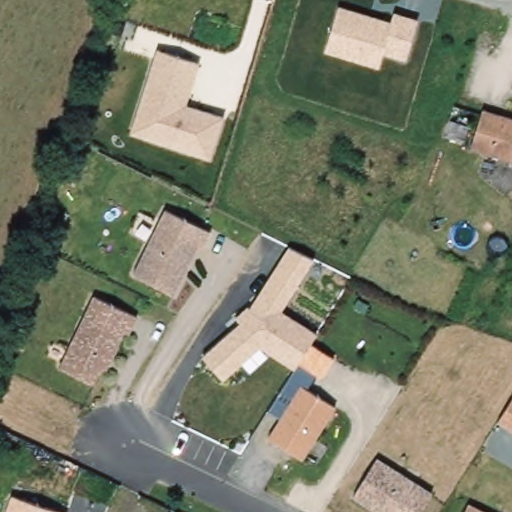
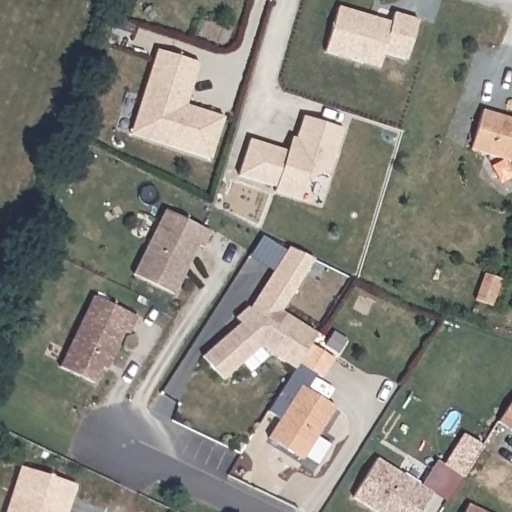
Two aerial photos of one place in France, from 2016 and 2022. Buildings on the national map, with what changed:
unchanged [(406,62),(382,54),(379,69),(325,53),(340,5),(389,21),(394,11),(417,19),(406,62)]
unchanged [(210,161),(126,134),(154,49),(200,62),(187,104),(223,116),(210,161)]
unchanged [(472,150),(479,110),(512,118),(512,160),(472,150)]
new [(329,175),(321,173),(304,182),(299,199),(274,191),(275,187),(239,175),(250,139),(288,150),(291,137),(295,139),(302,115),(342,129),(329,175)]
unchanged [(214,233),(179,294),(135,274),(165,209),(214,233)]
unchanged [(282,311),(317,333),(293,371),(259,348),(222,379),(201,356),(236,325),(249,309),(288,246),(313,260),(282,311)]
unchanged [(139,317),(99,385),(63,367),(95,296),(139,317)]
new [(334,359),(322,377),(317,374),(314,378),(332,388),(324,400),(300,385),(281,416),(269,410),(293,371),(298,363),(309,344),(334,359)]
unchanged [(304,460),(267,438),(300,385),(337,408),(304,460)]
unchanged [(501,424),(512,405),(512,430),(501,424)]
new [(482,445),(462,477),(446,500),(434,494),(435,493),(422,484),(437,460),(444,464),(463,433),(482,445)]
unchanged [(422,512),(373,512),(353,498),(381,457),(435,493),(422,512)]
new [(20,466),(77,484),(67,512),(62,512),(11,495),(20,466)]
unchanged [(62,512),(2,512),(9,494),(62,512)]
unchanged [(467,512),(472,504),(490,512),(467,512)]

